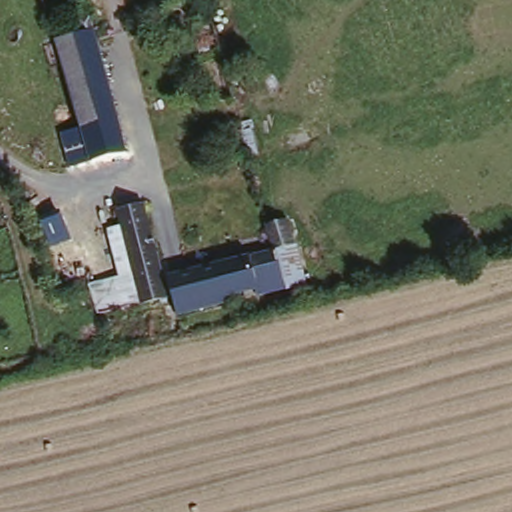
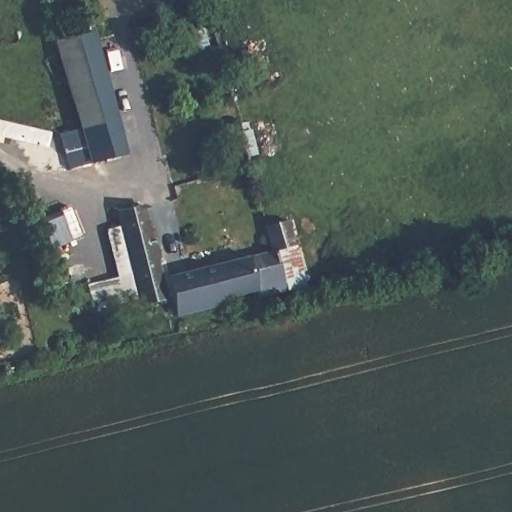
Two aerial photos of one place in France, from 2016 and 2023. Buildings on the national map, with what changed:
unchanged [(221,51),(199,56),(191,20),(215,16),(221,51)]
unchanged [(80,34),(79,28),(84,26),(82,21),(95,19),(131,170),(99,181),(85,184),(75,135),(87,130),(60,41),(80,34)]
unchanged [(258,301),(257,293),(229,300),(230,309),(176,322),(172,300),(140,308),(115,211),(148,202),(169,274),(272,250),(265,224),(293,220),(312,288),(258,301)]
unchanged [(100,315),(91,280),(130,269),(139,301),(100,315)]

